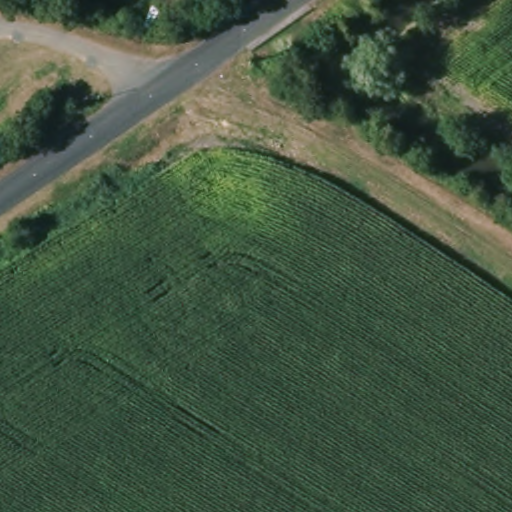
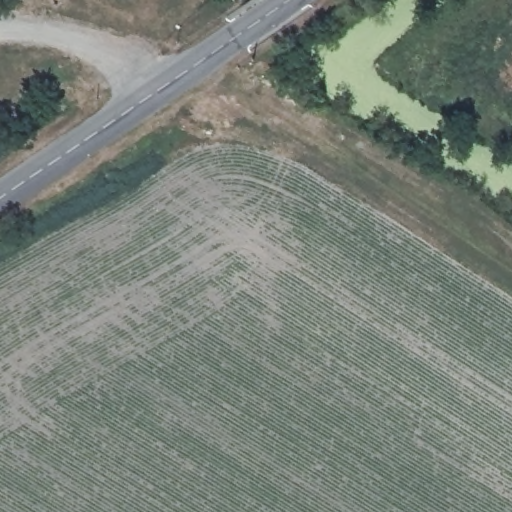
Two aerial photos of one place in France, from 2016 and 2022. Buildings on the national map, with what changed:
[]

